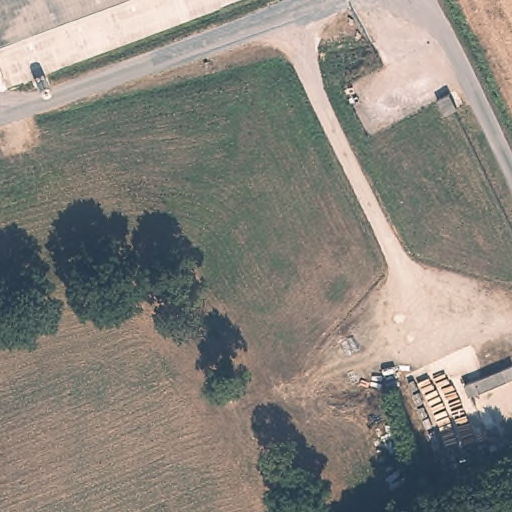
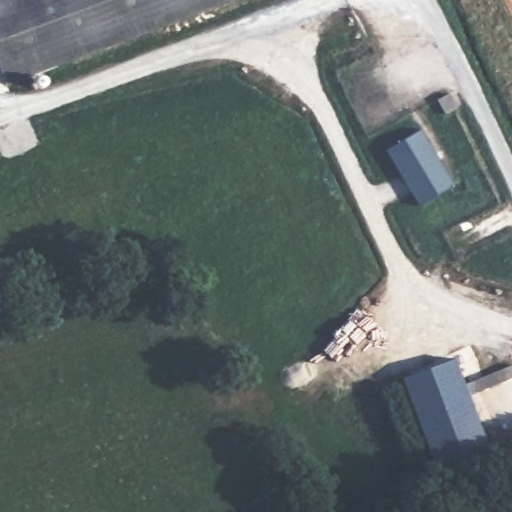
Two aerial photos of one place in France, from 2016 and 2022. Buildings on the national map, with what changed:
unchanged [(0,86),(0,0),(240,0),(0,86)]
new [(420,130),(452,184),(420,205),(388,151),(420,130)]
new [(455,358),(493,459),(442,481),(403,380),(455,358)]

